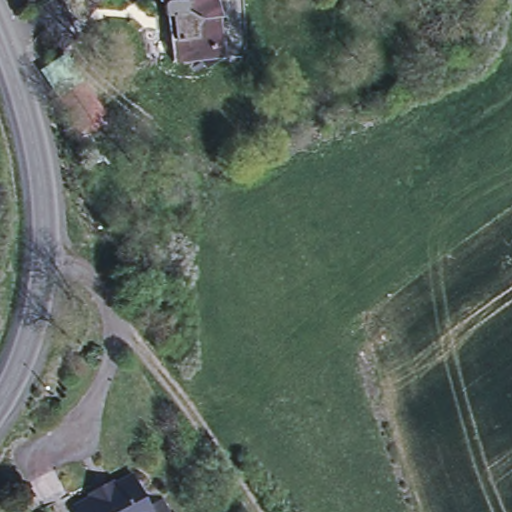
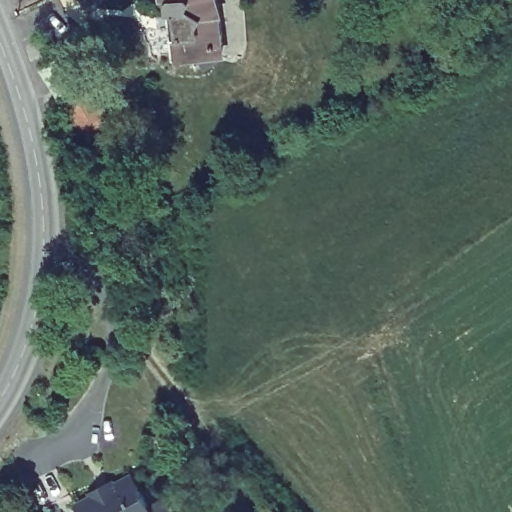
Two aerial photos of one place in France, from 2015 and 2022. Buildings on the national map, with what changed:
unchanged [(25,9),(20,0),(46,0),(25,9)]
unchanged [(105,2),(85,27),(67,13),(58,0),(103,0),(105,2)]
unchanged [(222,1),(219,2),(225,34),(227,43),(223,49),(203,55),(203,63),(180,65),(174,21),(172,19),(170,9),(173,7),(170,0),(222,0),(222,1)]
unchanged [(60,85),(77,73),(82,79),(88,79),(95,84),(95,87),(94,94),(115,124),(95,139),(63,91),(60,85)]
unchanged [(110,480),(112,485),(132,475),(147,505),(160,498),(168,512),(77,512),(73,506),(92,496),(88,491),(110,480)]

